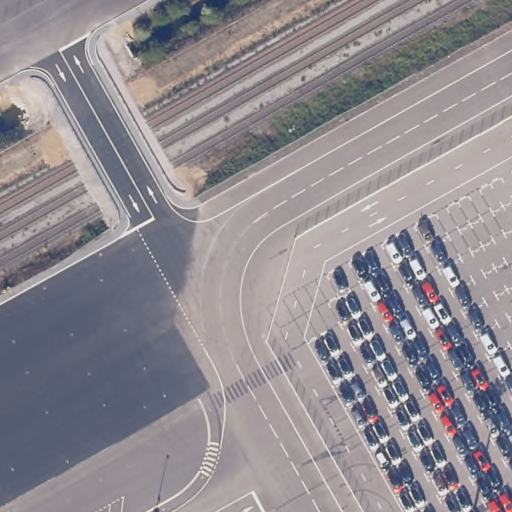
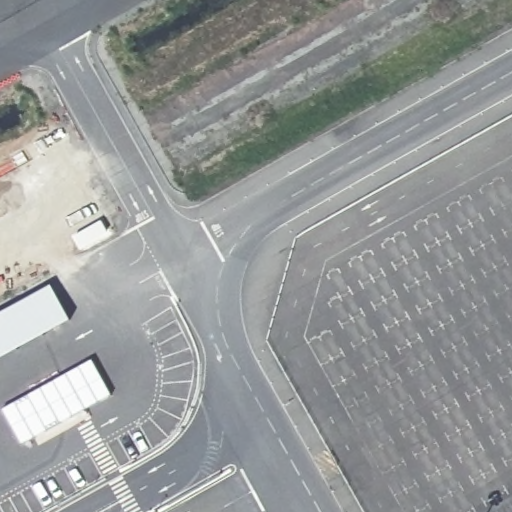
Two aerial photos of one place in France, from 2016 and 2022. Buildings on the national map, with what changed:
new [(52,284),(73,319),(0,359),(0,313),(52,284)]

